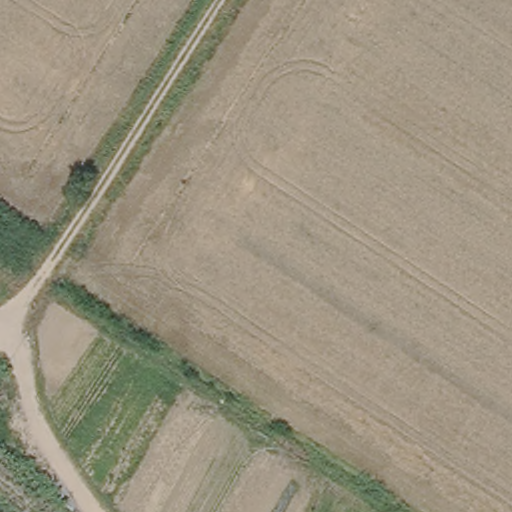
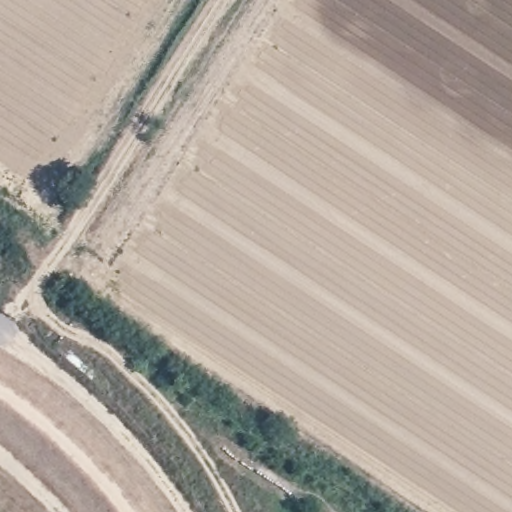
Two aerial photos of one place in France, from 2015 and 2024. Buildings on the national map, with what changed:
[]

